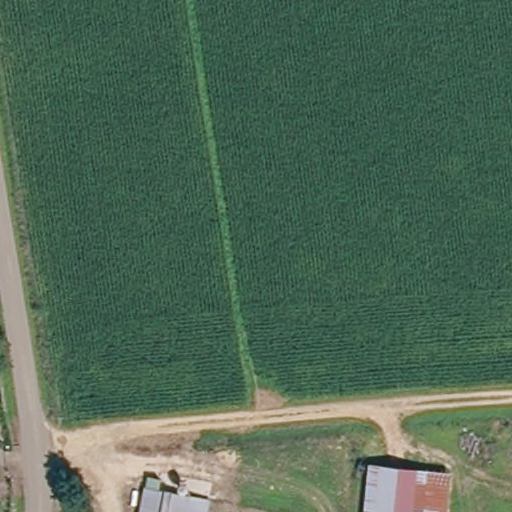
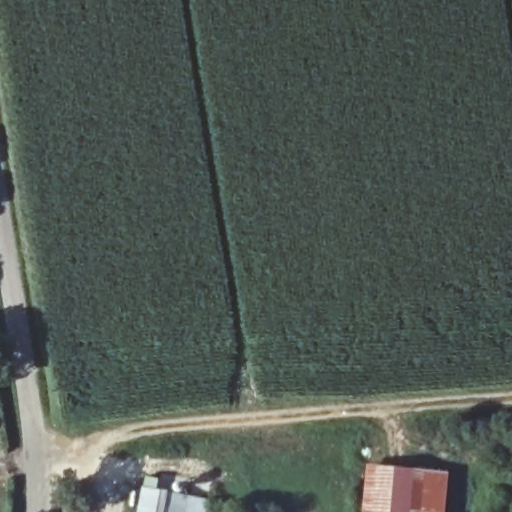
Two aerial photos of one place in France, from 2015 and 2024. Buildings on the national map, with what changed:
unchanged [(453,471),(449,512),(364,512),(368,464),(453,471)]
unchanged [(144,512),(149,489),(208,501),(206,512),(144,512)]

